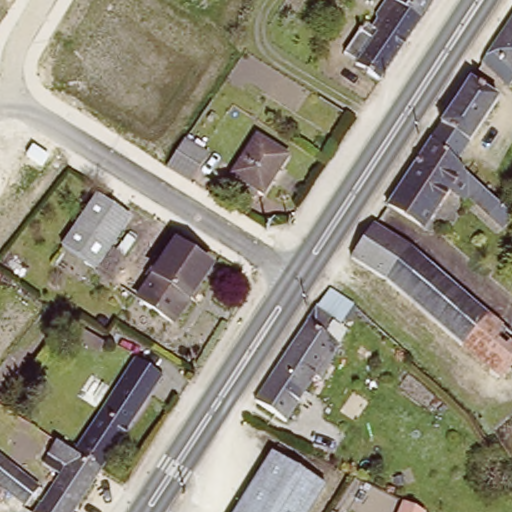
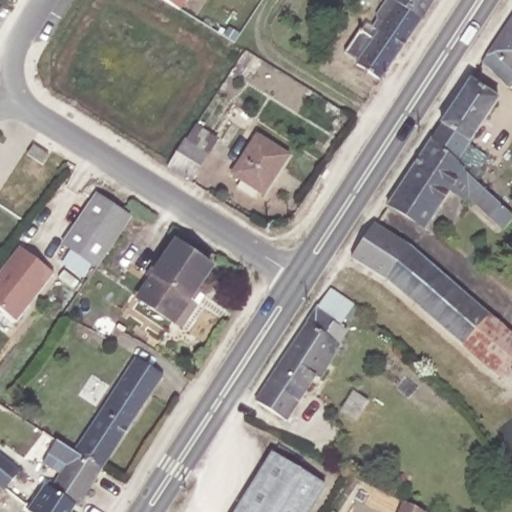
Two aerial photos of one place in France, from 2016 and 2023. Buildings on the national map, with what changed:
new [(160,0),(187,0),(180,12),(160,0)]
unchanged [(389,0),(399,0),(424,17),(382,84),(356,67),(357,64),(345,57),(362,32),(364,33),(369,25),(376,30),(382,20),(377,17),(389,0)]
unchanged [(399,0),(435,0),(424,17),(399,0)]
unchanged [(495,52),(512,26),(512,89),(487,64),(495,52)]
unchanged [(465,164),(438,139),(477,80),(508,97),(465,164)]
unchanged [(267,191),(263,188),(257,197),(242,188),(247,179),(237,172),(263,132),(293,152),(267,191)]
unchanged [(214,154),(194,182),(167,167),(187,137),(214,154)]
unchanged [(465,164),(475,174),(512,207),(512,226),(475,196),(472,199),(460,189),(441,218),(432,212),(425,224),(395,204),(438,139),(465,164)]
unchanged [(129,216),(122,227),(97,266),(65,245),(96,194),(104,199),(129,216)]
unchanged [(362,257),(383,224),(416,247),(493,312),(467,344),(392,278),(362,257)]
unchanged [(175,241),(215,267),(180,320),(142,295),(175,241)]
new [(17,323),(0,311),(0,270),(17,247),(54,275),(17,323)]
unchanged [(331,282),(352,299),(342,312),(340,310),(335,318),(344,325),(345,327),(347,330),(346,335),(325,368),(322,367),(289,418),(256,397),(331,282)]
unchanged [(140,358),(168,377),(105,472),(77,455),(140,358)]
unchanged [(284,447),(300,458),(294,467),(330,491),(315,512),(242,512),(277,457),(284,447)]
unchanged [(69,468),(59,462),(67,449),(77,455),(105,472),(78,512),(39,512),(69,468)]
unchanged [(44,494),(32,510),(0,484),(0,462),(2,460),(44,494)]
unchanged [(6,493),(0,502),(0,489),(6,493)]
unchanged [(408,512),(400,512),(402,509),(408,512)]

